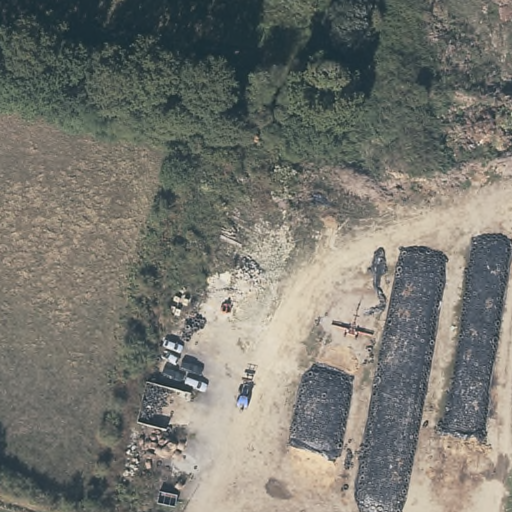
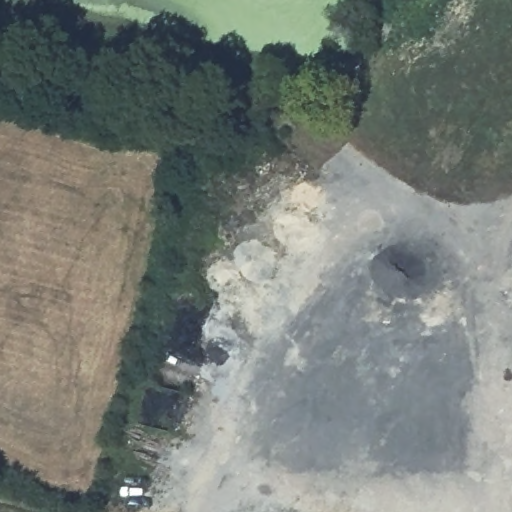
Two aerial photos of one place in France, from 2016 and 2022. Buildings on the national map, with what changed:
[]

